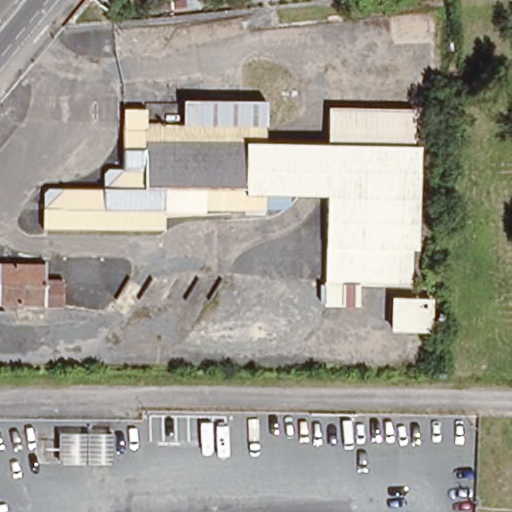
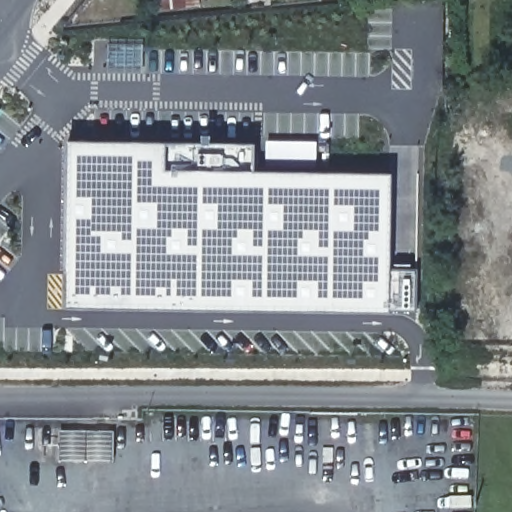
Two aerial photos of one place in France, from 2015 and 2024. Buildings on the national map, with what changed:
demolished [(105,216),(104,232),(42,232),(42,194),(97,195),(99,170),(121,171),(123,129),(122,109),(146,110),(146,125),(181,125),(182,96),(260,97),(261,140),(326,140),(327,106),(411,106),(410,143),(421,144),(417,245),(407,245),(407,282),(352,283),(352,304),(321,304),(321,299),(322,282),(322,194),(287,193),(287,209),(260,208),(261,212),(204,213),(203,217),(163,216),(105,216)]
new [(69,139),(167,141),(255,143),(254,170),(265,170),(265,139),(317,141),(314,171),(392,173),(390,267),(417,268),(416,308),(389,307),(389,309),(67,305),(69,139)]
demolished [(65,283),(65,260),(105,260),(104,288),(65,287),(65,283)]
demolished [(43,268),(44,283),(62,283),(62,307),(0,307),(0,267),(43,268)]
demolished [(386,335),(388,297),(431,298),(428,335),(386,335)]
new [(59,462),(59,432),(114,434),(113,463),(59,462)]

